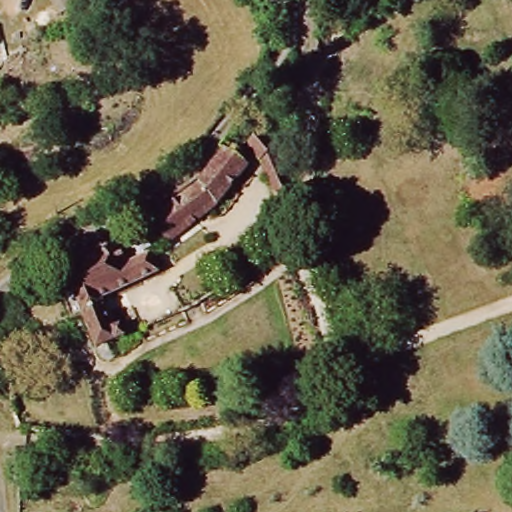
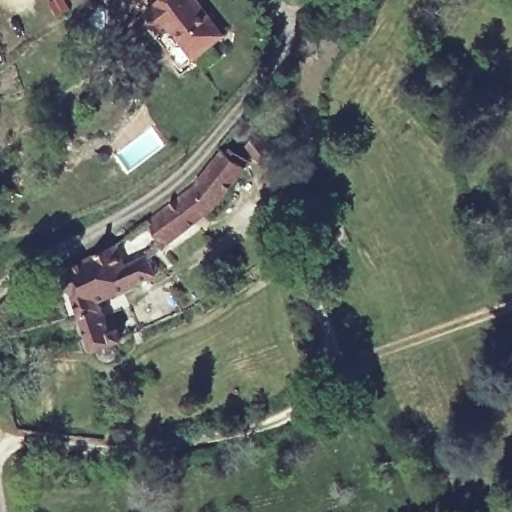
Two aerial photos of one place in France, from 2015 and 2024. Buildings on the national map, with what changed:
new [(157,0),(191,0),(219,35),(190,58),(166,28),(157,34),(141,13),(157,0)]
unchanged [(288,187),(270,196),(255,151),(244,136),(258,123),(272,141),(288,187)]
unchanged [(253,168),(222,205),(169,246),(150,223),(195,185),(231,151),(253,168)]
unchanged [(86,325),(62,269),(115,238),(126,260),(150,250),(159,270),(97,301),(117,342),(115,357),(100,356),(86,325)]
unchanged [(69,332),(46,277),(62,269),(86,325),(69,332)]

